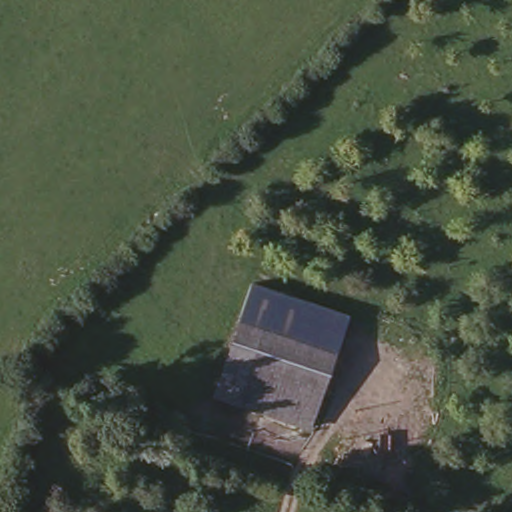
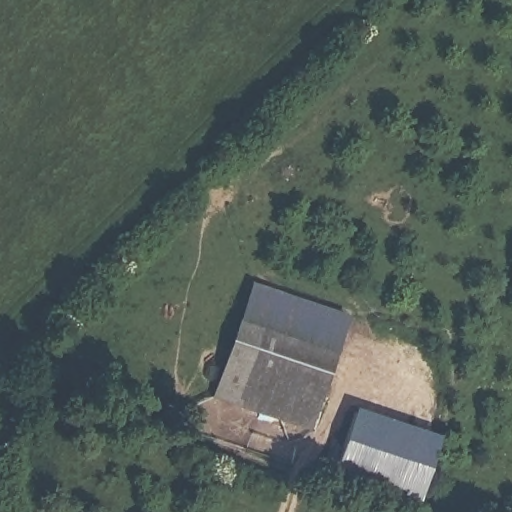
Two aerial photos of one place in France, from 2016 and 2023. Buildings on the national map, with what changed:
unchanged [(255,280),(352,308),(310,420),(217,388),(255,280)]
new [(446,439),(428,508),(330,479),(354,409),(446,439)]

